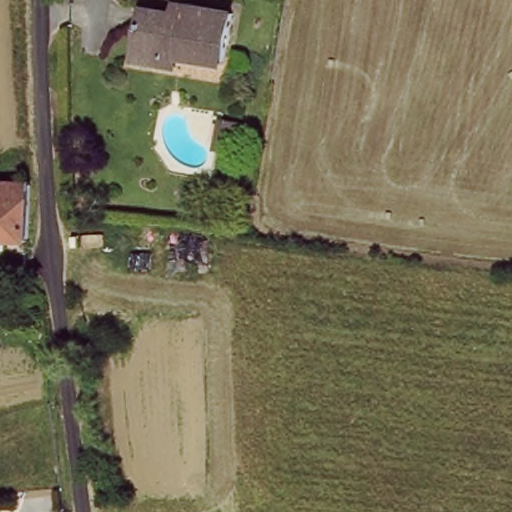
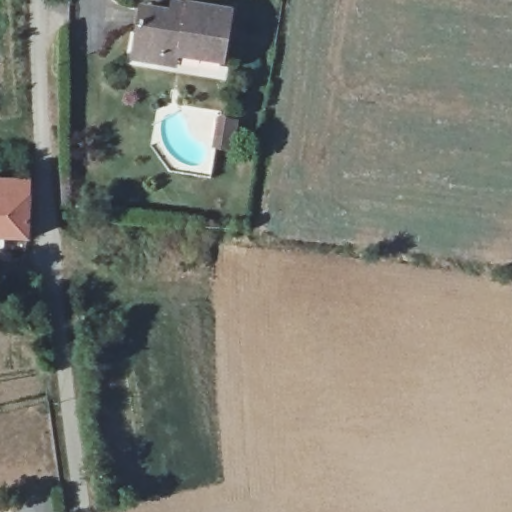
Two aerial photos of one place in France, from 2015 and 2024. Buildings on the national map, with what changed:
unchanged [(160,58),(134,53),(143,3),(176,8),(177,0),(207,0),(234,4),(228,56),(180,51),(179,61),(160,58)]
unchanged [(29,234),(0,234),(0,174),(30,175),(29,234)]

